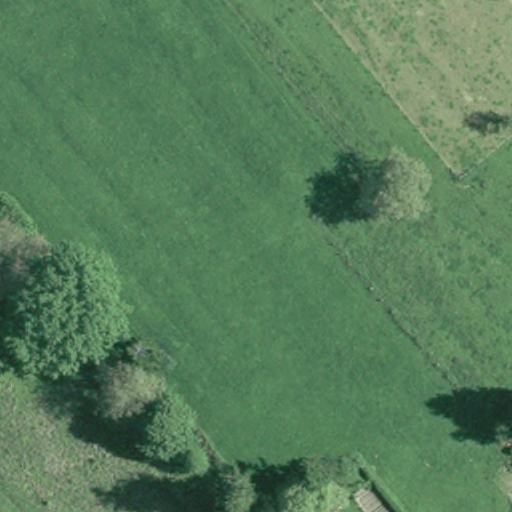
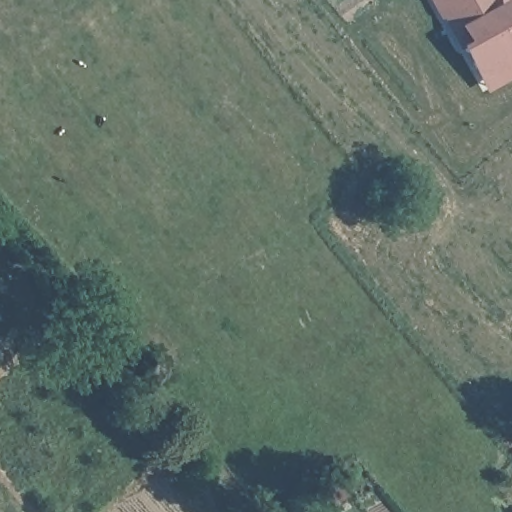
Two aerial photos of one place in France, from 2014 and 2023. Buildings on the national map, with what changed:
new [(512,22),(512,64),(511,65),(502,52),(474,68),(462,45),(470,40),(453,9),(440,15),(432,0),(501,0),(512,22)]

